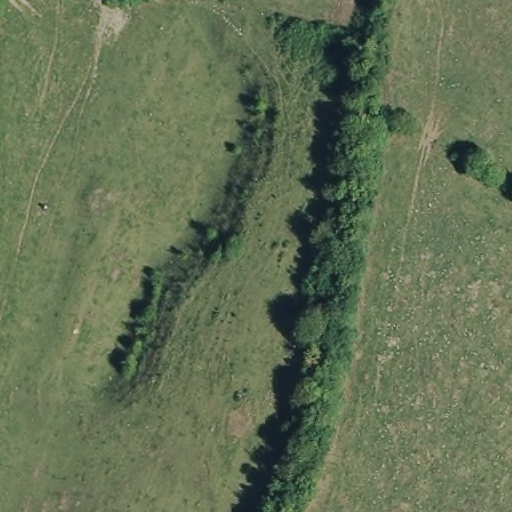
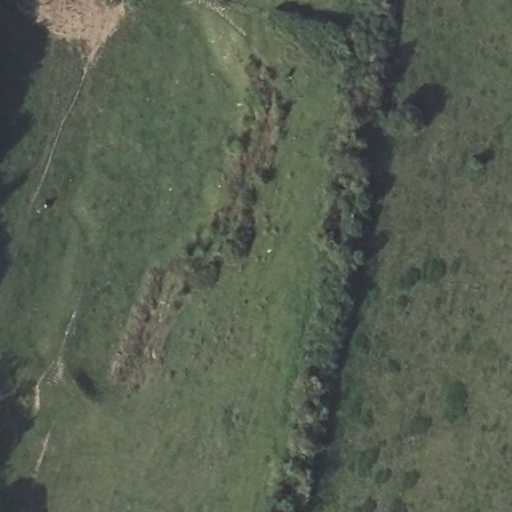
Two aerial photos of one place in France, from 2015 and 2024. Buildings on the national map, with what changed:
[]

